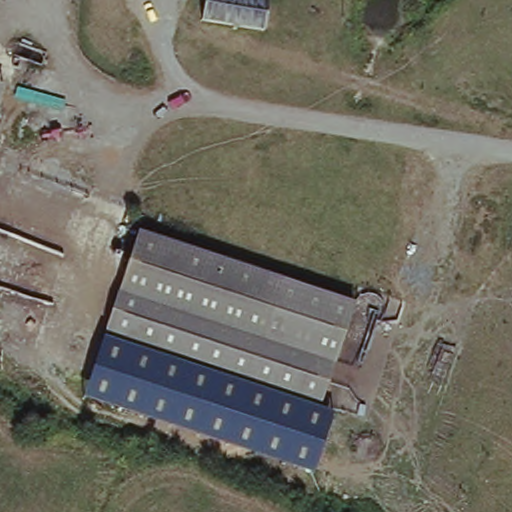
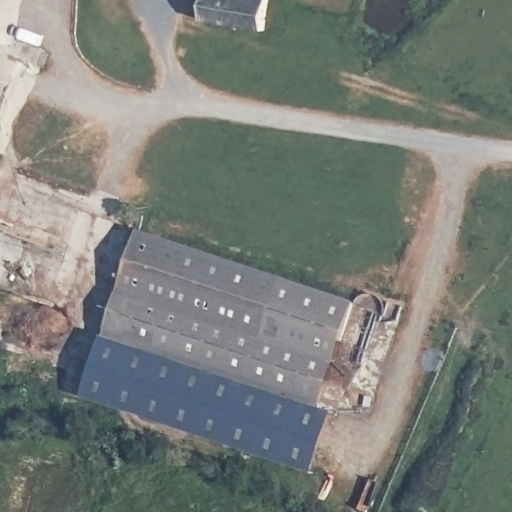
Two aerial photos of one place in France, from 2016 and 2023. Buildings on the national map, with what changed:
unchanged [(204,0),(268,0),(260,28),(201,17),(204,0)]
unchanged [(7,88),(0,108),(0,85),(7,88)]
unchanged [(139,226),(354,301),(332,363),(117,288),(139,226)]
unchanged [(332,363),(316,406),(102,330),(117,288),(332,363)]
unchanged [(109,332),(316,406),(332,413),(315,472),(81,397),(102,330),(109,332)]

